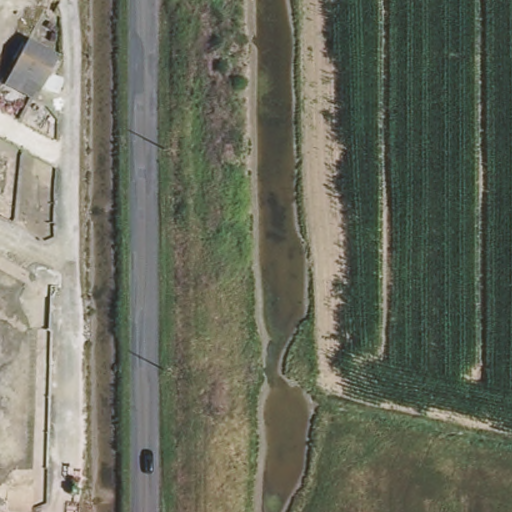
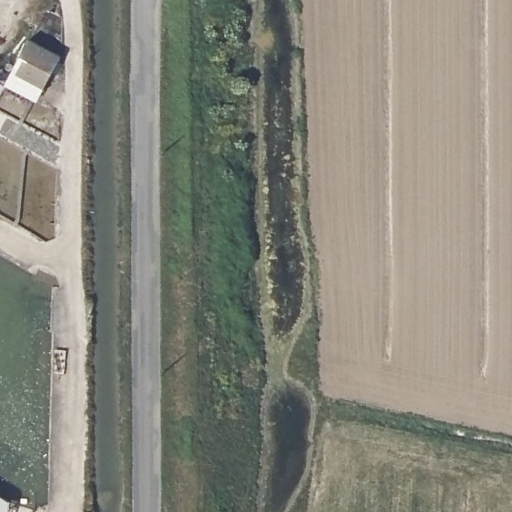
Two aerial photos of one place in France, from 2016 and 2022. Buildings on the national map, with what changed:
unchanged [(55,60),(35,99),(5,82),(25,44),(55,60)]

